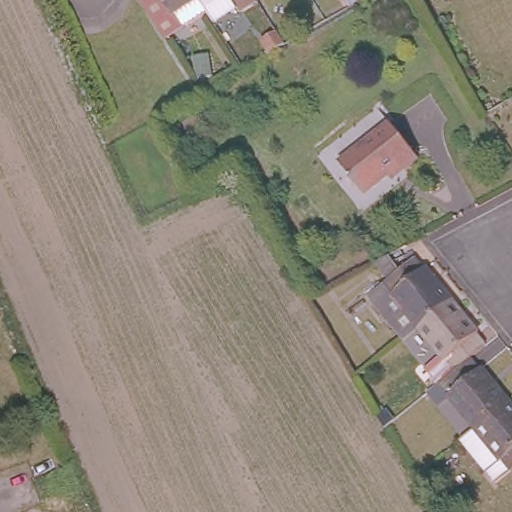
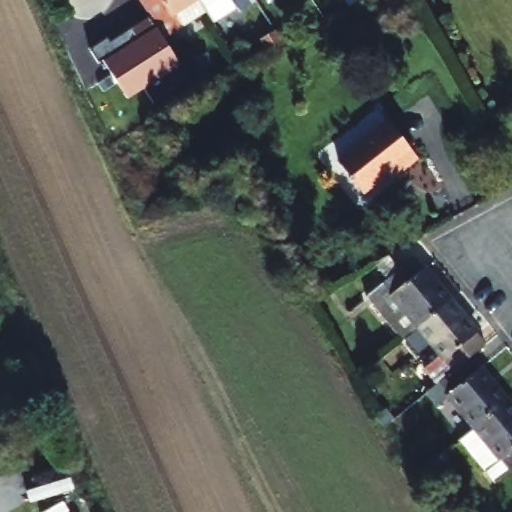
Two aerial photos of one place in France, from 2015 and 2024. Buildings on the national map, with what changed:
new [(98,61),(91,49),(108,38),(111,42),(149,18),(138,0),(157,0),(173,26),(213,0),(219,11),(237,0),(244,0),(245,1),(247,0),(255,0),(256,1),(240,12),(236,7),(214,23),(206,11),(166,40),(181,67),(128,99),(105,62),(103,59),(98,61)]
unchanged [(173,26),(157,0),(213,0),(173,26)]
unchanged [(213,0),(237,0),(219,11),(213,0)]
unchanged [(244,0),(247,0),(245,1),(244,0)]
unchanged [(418,156),(404,167),(399,161),(363,190),(339,158),(387,119),(418,156)]
unchanged [(401,333),(366,289),(387,273),(373,257),(388,249),(399,262),(413,251),(448,296),(401,333)]
unchanged [(484,340),(469,353),(438,379),(401,333),(448,296),(484,340)]
unchanged [(504,397),(473,423),(438,379),(469,353),(504,397)]
unchanged [(512,463),(508,466),(473,423),(504,397),(512,408),(512,463)]

